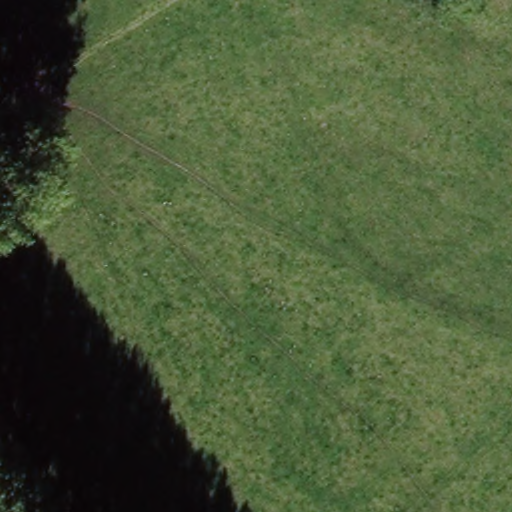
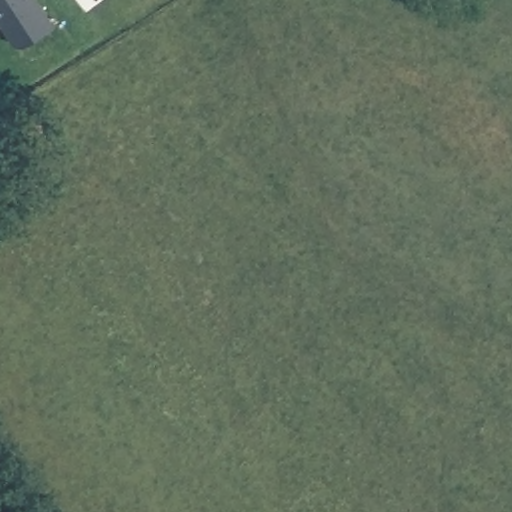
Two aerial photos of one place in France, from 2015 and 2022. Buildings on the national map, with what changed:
new [(15,52),(8,50),(0,38),(0,0),(27,0),(47,32),(15,52)]

